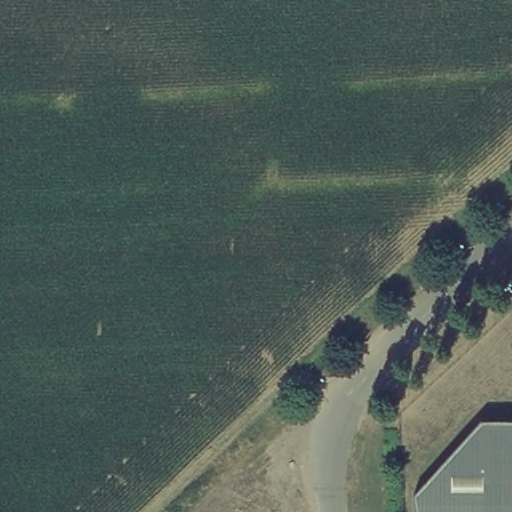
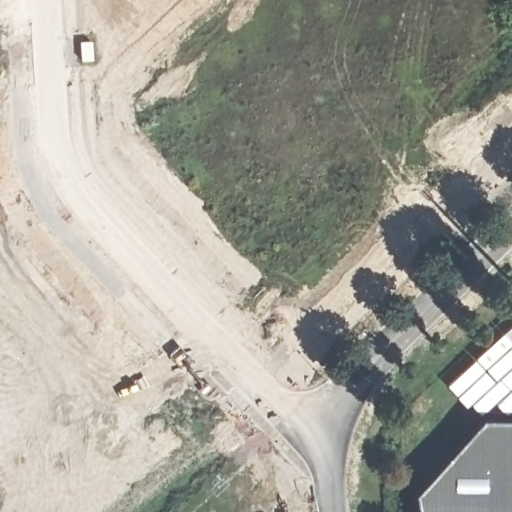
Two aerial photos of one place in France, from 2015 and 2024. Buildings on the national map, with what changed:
unchanged [(512,419),(512,512),(418,512),(415,491),(481,419),(512,419)]

